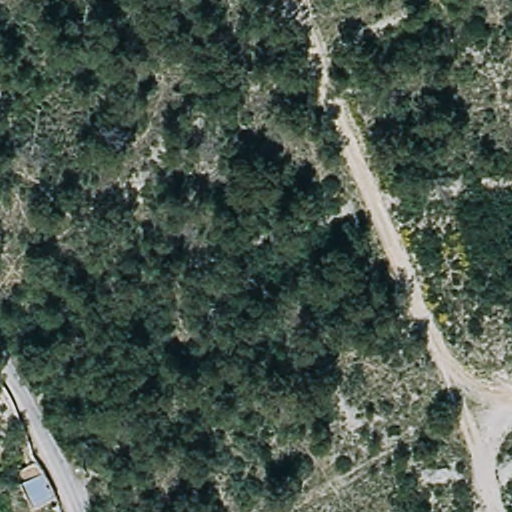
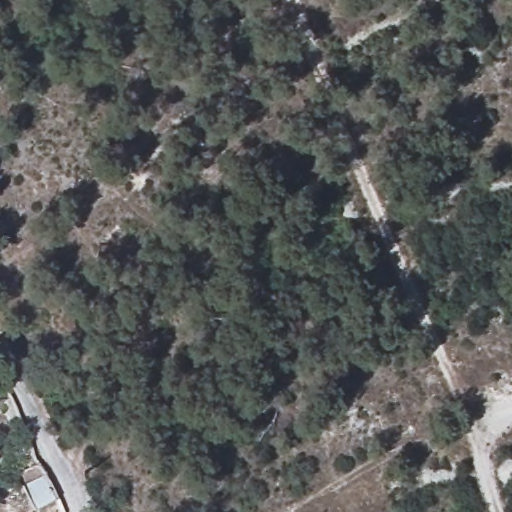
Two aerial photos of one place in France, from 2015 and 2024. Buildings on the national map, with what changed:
unchanged [(57,497),(32,511),(20,487),(25,484),(18,469),(38,459),(57,497)]

